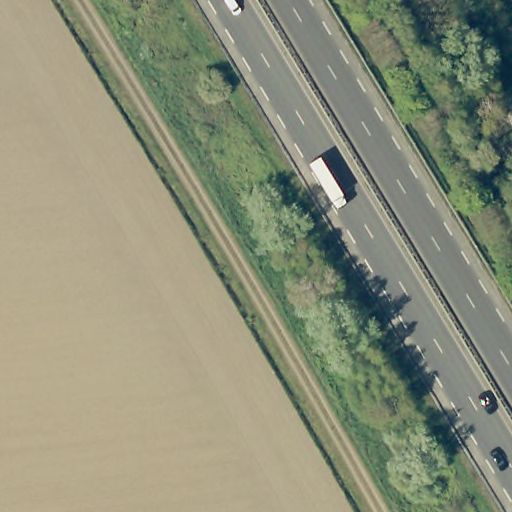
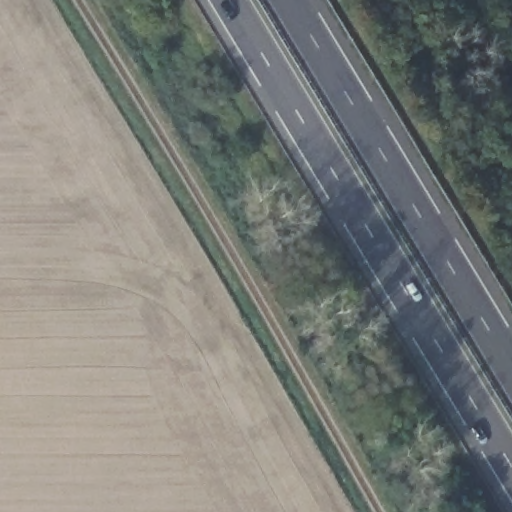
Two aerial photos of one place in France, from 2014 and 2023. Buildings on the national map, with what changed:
[]

